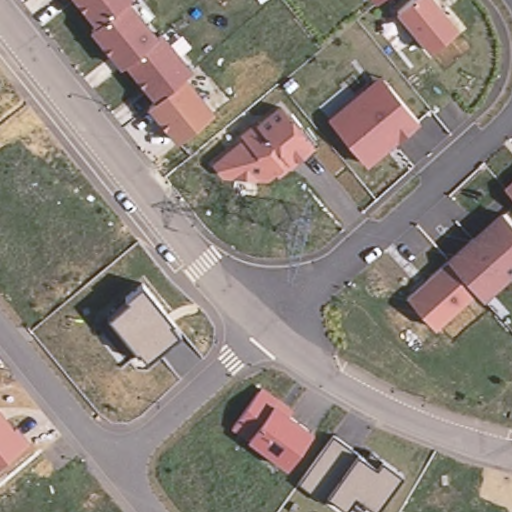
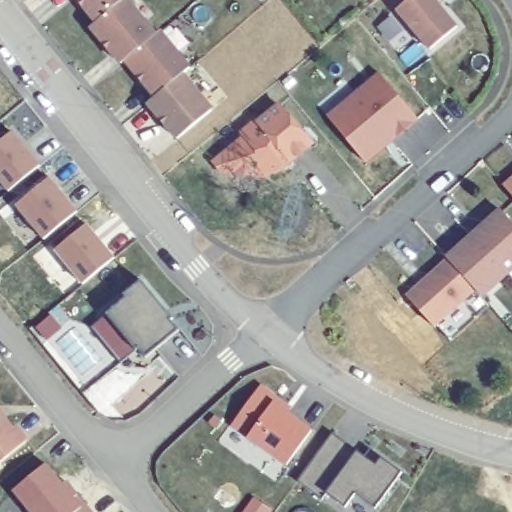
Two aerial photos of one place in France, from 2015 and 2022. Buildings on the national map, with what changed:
unchanged [(79,0),(129,0),(100,25),(79,0)]
unchanged [(160,36),(129,63),(125,66),(94,30),(100,25),(129,0),(130,0),(160,36)]
unchanged [(380,0),(382,0),(380,1),(380,0)]
unchanged [(456,29),(429,52),(395,12),(409,0),(432,0),(456,29)]
unchanged [(129,63),(160,36),(165,33),(195,69),(186,76),(160,99),(129,63)]
unchanged [(160,99),(186,76),(215,112),(181,141),(152,105),(160,99)]
unchanged [(368,164),(338,128),(331,119),(345,107),(359,96),(382,76),(389,84),(420,120),(368,164)]
unchanged [(249,137),(246,134),(261,121),(262,123),(282,106),(314,144),(293,161),(291,159),(270,175),(227,174),(218,164),(249,137)]
new [(0,142),(14,131),(41,165),(9,192),(0,181),(0,142)]
new [(15,205),(51,177),(78,213),(43,240),(15,205)]
unchanged [(507,191),(504,187),(503,186),(512,178),(512,196),(507,191)]
unchanged [(473,235),(474,237),(502,211),(512,221),(512,266),(507,271),(508,272),(485,294),(483,292),(479,288),(450,256),(473,235)]
new [(54,251),(88,224),(116,258),(83,287),(54,251)]
unchanged [(438,325),(409,293),(450,256),(479,288),(438,325)]
unchanged [(130,298),(128,293),(141,284),(178,329),(143,357),(108,316),(130,298)]
new [(137,350),(120,363),(92,328),(108,316),(137,350)]
unchanged [(262,386),(280,398),(276,402),(313,429),(289,467),(248,438),(232,427),(262,386)]
unchanged [(18,425),(30,441),(0,464),(0,409),(15,427),(18,425)]
unchanged [(332,436),(357,453),(377,467),(383,460),(403,474),(376,509),(355,496),(346,508),(328,494),(322,500),(300,482),(332,436)]
new [(69,498),(80,510),(81,512),(21,512),(16,507),(47,480),(65,501),(69,498)]

